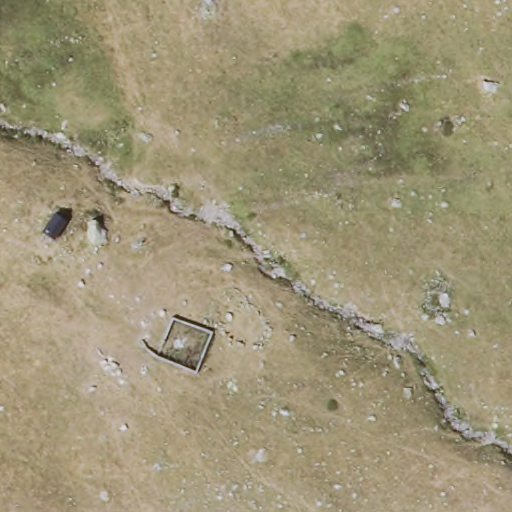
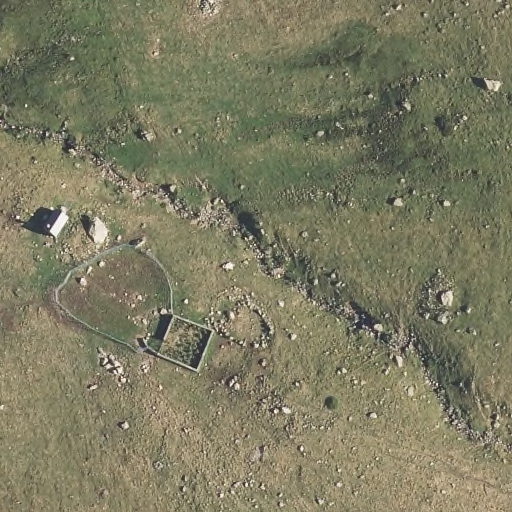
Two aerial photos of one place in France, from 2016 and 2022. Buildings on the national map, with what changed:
unchanged [(68,220),(56,242),(38,230),(46,220),(51,212),(68,220)]

